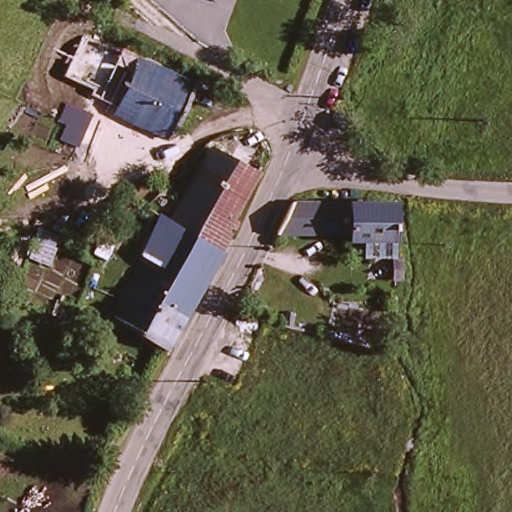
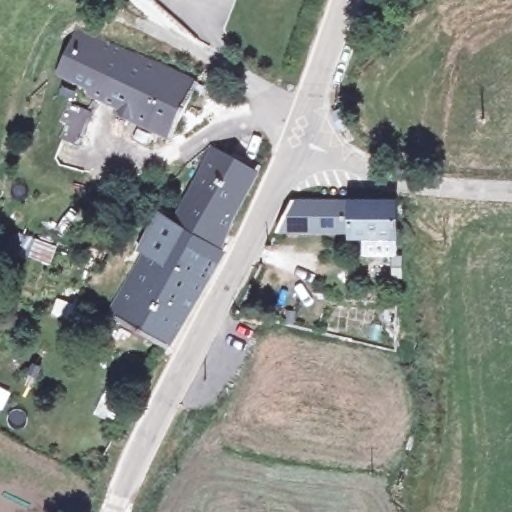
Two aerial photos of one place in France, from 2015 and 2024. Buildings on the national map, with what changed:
unchanged [(197,86),(174,133),(129,114),(132,107),(104,94),(106,89),(73,72),(89,37),(197,86)]
unchanged [(56,127),(63,111),(85,121),(79,137),(56,127)]
unchanged [(274,147),(254,197),(245,216),(228,245),(171,339),(121,312),(176,210),(186,215),(218,149),(246,136),(274,147)]
unchanged [(361,240),(362,231),(292,230),(293,215),(302,199),(399,197),(399,241),(361,240)]
unchanged [(61,318),(45,311),(51,296),(69,302),(61,318)]

